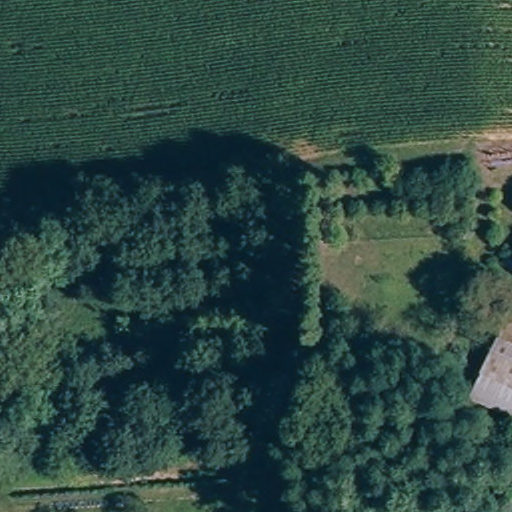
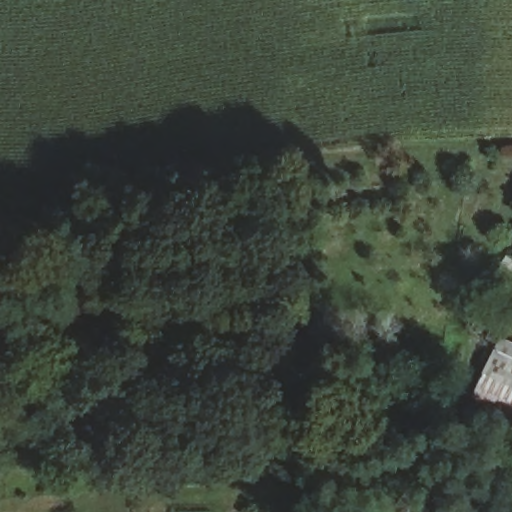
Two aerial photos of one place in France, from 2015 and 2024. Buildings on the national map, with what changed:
unchanged [(512,349),(512,421),(485,410),(463,401),(491,339),(501,343),(512,349)]

